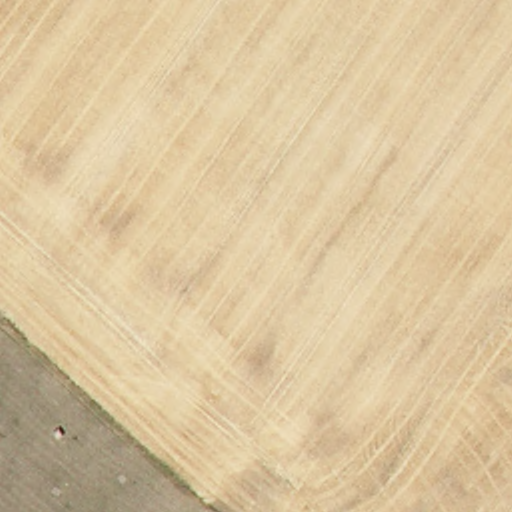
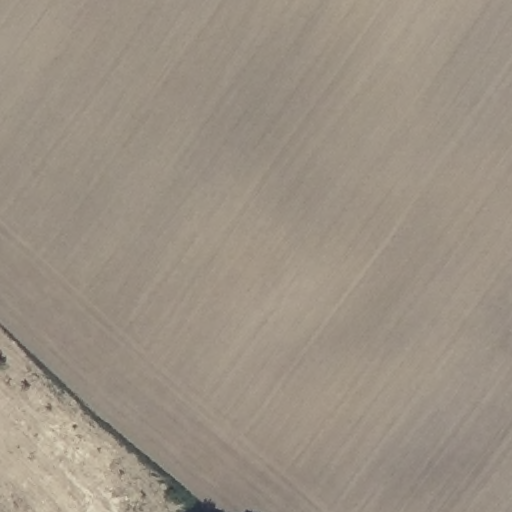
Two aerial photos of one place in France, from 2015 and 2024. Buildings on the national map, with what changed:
[]

